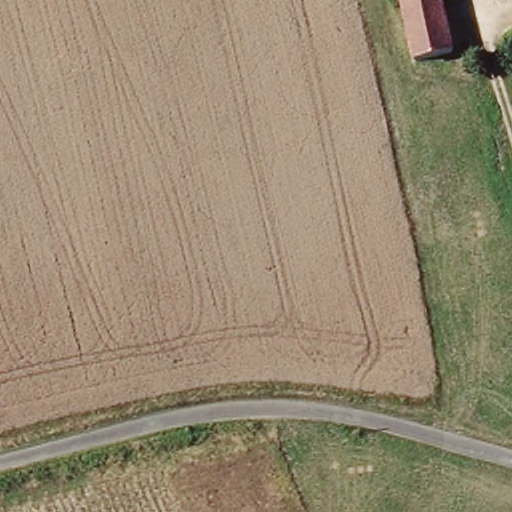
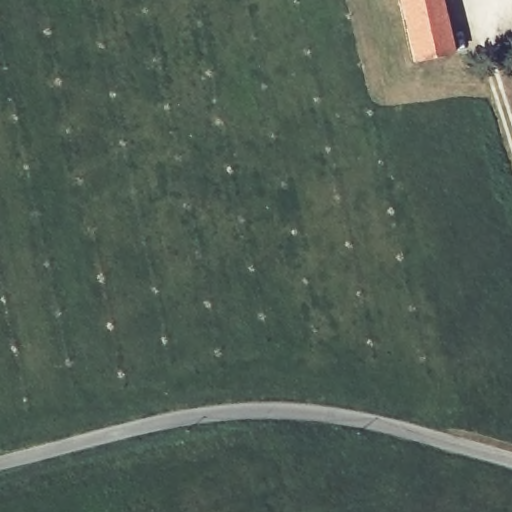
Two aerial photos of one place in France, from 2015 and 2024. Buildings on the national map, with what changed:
unchanged [(456,56),(412,67),(394,0),(443,0),(456,56)]

